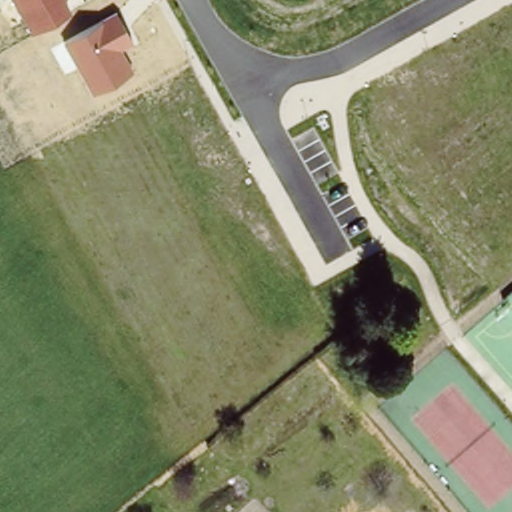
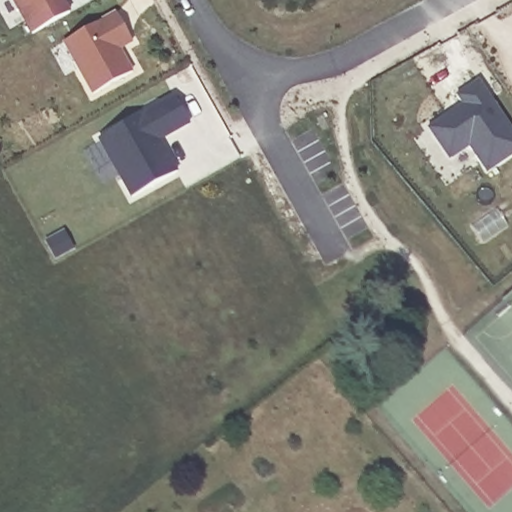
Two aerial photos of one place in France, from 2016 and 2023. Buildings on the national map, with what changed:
unchanged [(33,34),(13,0),(64,0),(70,13),(33,34)]
unchanged [(134,41),(121,49),(133,71),(93,95),(64,43),(117,12),(134,41)]
new [(456,94),(479,79),(512,127),(512,156),(488,173),(478,158),(460,170),(451,157),(448,159),(427,127),(462,104),(456,94)]
new [(173,94),(191,123),(159,141),(178,170),(131,197),(98,138),(173,94)]
new [(64,231),(75,250),(54,261),(44,242),(64,231)]

